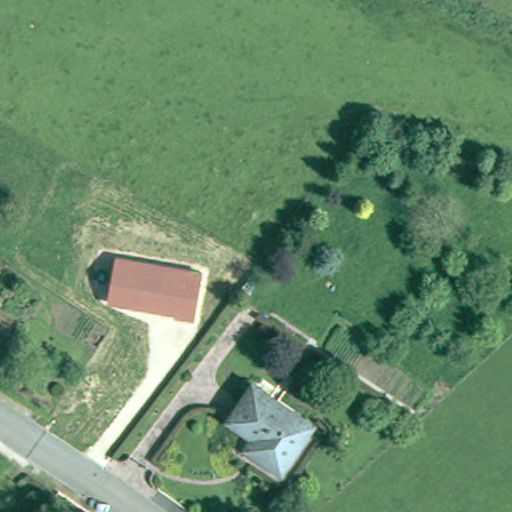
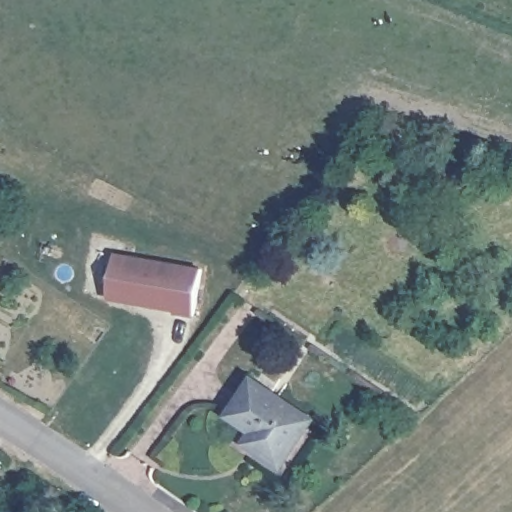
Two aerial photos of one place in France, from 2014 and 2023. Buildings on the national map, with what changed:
unchanged [(204,270),(195,317),(108,299),(117,251),(204,270)]
unchanged [(0,285),(3,287),(0,294),(0,285)]
unchanged [(260,427),(236,412),(258,376),(318,414),(289,461),(267,447),(254,438),(260,427)]

